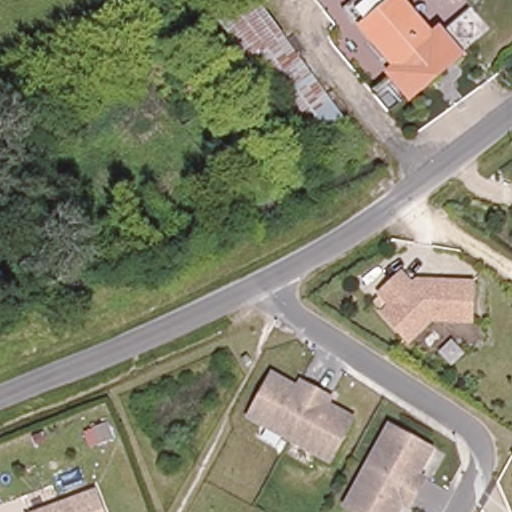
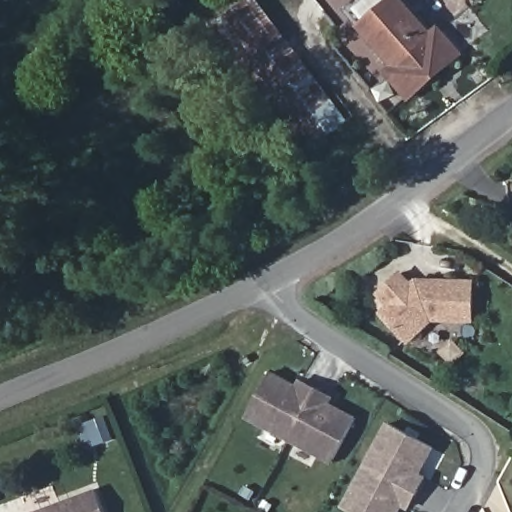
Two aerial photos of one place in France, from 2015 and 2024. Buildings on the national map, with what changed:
unchanged [(348,126),(314,150),(224,24),(258,0),(259,0),(348,126)]
unchanged [(361,18),(384,0),(403,0),(432,38),(440,31),(459,55),(407,96),(388,72),(397,65),(361,18)]
unchanged [(471,321),(431,320),(407,342),(382,314),(390,306),(379,294),(401,274),(412,286),(417,281),(437,282),(472,282),(471,321)]
unchanged [(265,369),(283,379),(281,382),(290,387),(292,384),(295,377),(312,386),(329,395),(325,402),(324,405),(332,410),(334,407),(352,416),(329,460),(285,436),(241,413),(265,369)]
unchanged [(420,460),(417,459),(413,467),(416,469),(422,473),(413,490),(404,506),(397,503),(394,501),(390,510),(393,512),(350,512),(339,506),(363,463),(387,419),(430,442),(420,460)]
unchanged [(106,512),(43,512),(97,490),(106,512)]

